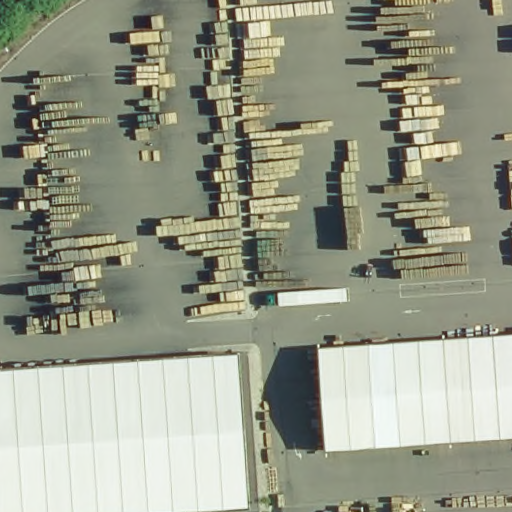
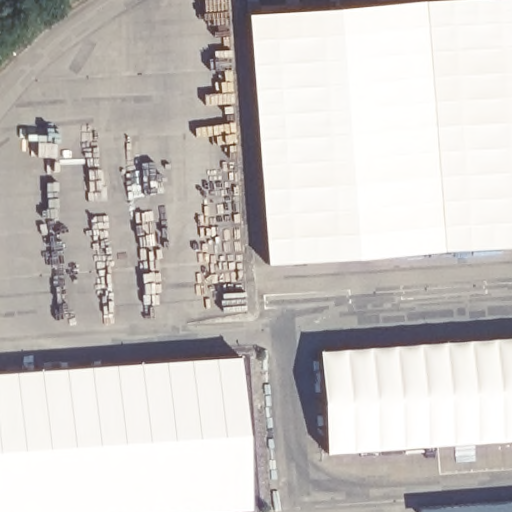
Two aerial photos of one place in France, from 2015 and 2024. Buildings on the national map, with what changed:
new [(512,0),(512,247),(268,268),(246,12),(407,0),(512,0)]
unchanged [(326,454),(321,347),(512,332),(512,440),(326,454)]
unchanged [(181,512),(0,512),(0,369),(239,352),(250,507),(181,512)]

